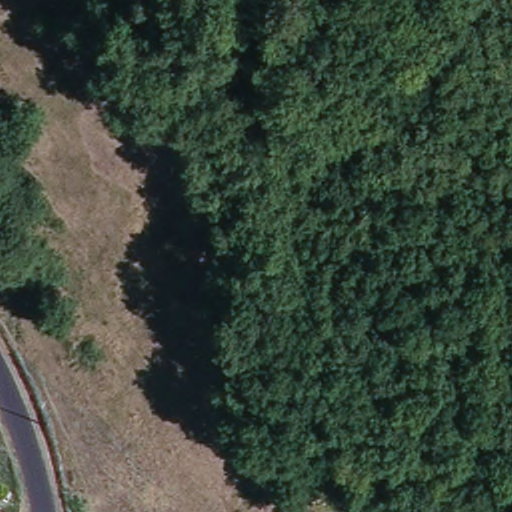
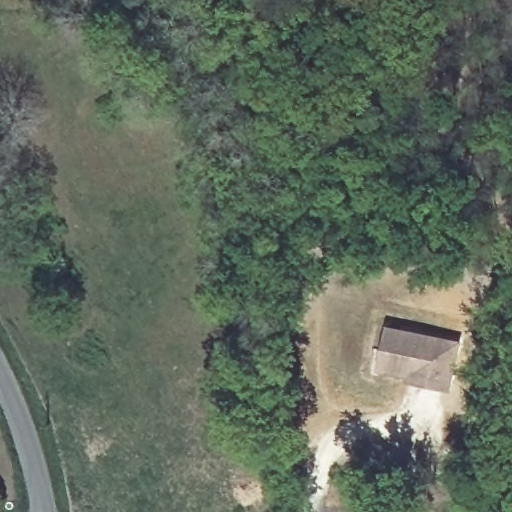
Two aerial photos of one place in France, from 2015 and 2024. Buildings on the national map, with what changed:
new [(385,326),(471,344),(462,387),(451,385),(450,392),(405,385),(405,377),(376,372),(385,326)]

